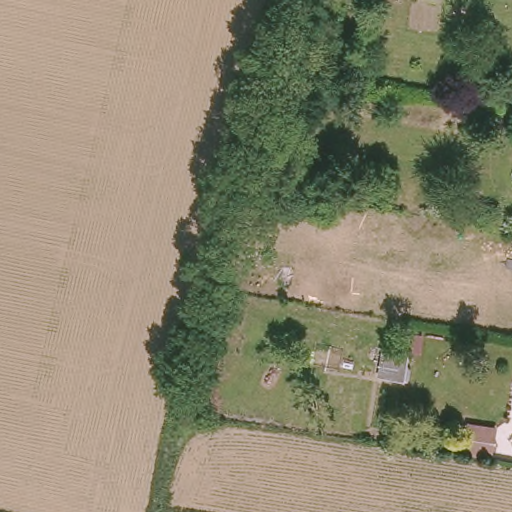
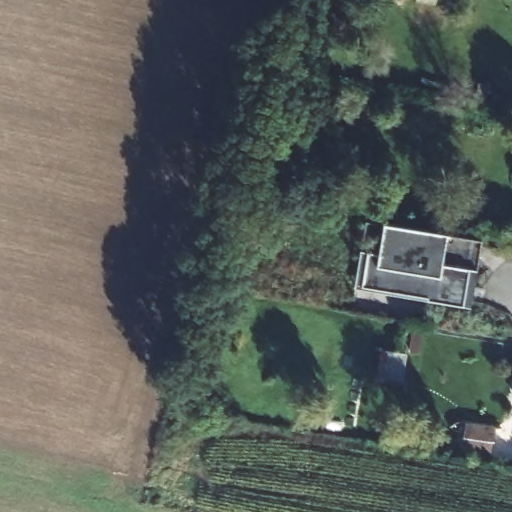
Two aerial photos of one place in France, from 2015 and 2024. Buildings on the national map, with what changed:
new [(473,307),(356,288),(369,222),(482,243),(473,307)]

